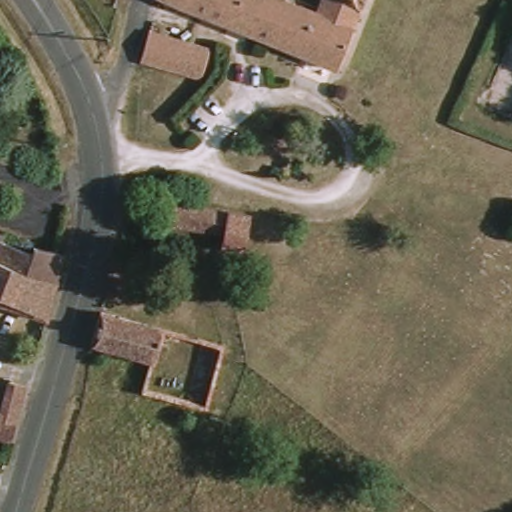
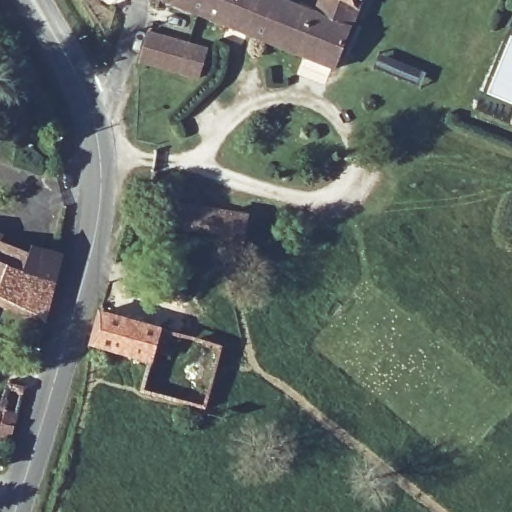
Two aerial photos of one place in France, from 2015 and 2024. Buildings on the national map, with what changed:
unchanged [(334,69),(168,0),(289,0),(314,10),(319,0),(362,0),(334,69)]
unchanged [(169,71),(146,65),(143,64),(150,34),(204,49),(198,69),(195,79),(169,71)]
unchanged [(162,221),(166,198),(250,215),(243,251),(223,247),(220,242),(205,238),(207,231),(162,221)]
unchanged [(0,241),(34,254),(37,247),(65,253),(58,283),(49,320),(0,302),(0,236),(2,237),(0,241)]
unchanged [(163,326),(154,364),(88,346),(99,308),(163,326)]
unchanged [(24,388),(8,441),(0,439),(0,408),(5,383),(24,388)]

